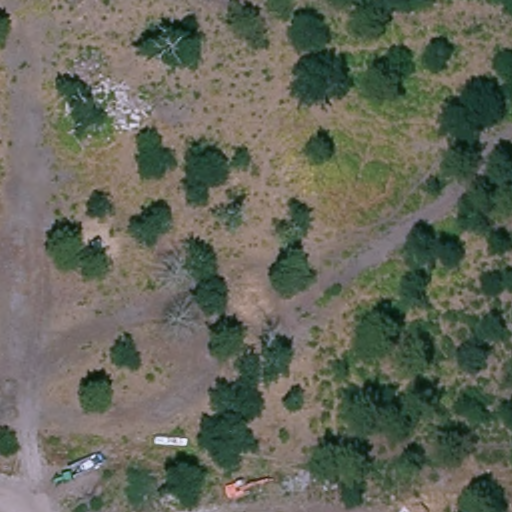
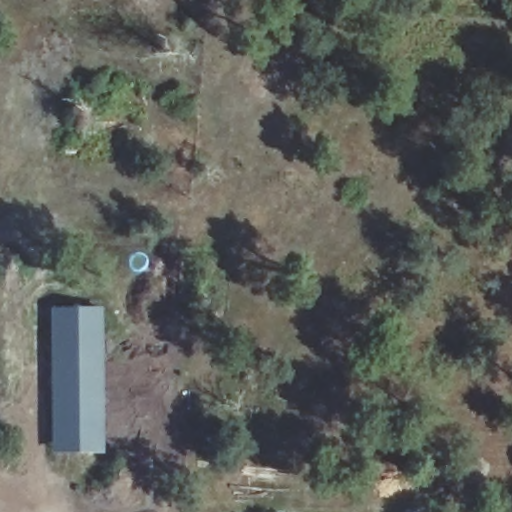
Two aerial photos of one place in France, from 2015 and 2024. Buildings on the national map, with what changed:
demolished [(291,150),(284,202),(255,197),(225,192),(232,142),(291,150)]
new [(104,306),(104,453),(51,453),(49,307),(104,306)]

